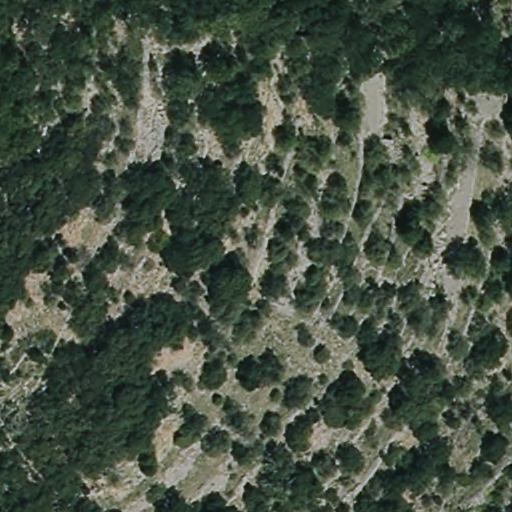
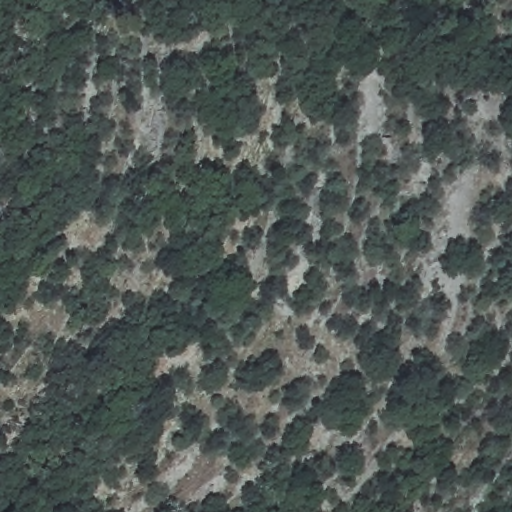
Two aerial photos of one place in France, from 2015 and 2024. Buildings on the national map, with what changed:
[]

